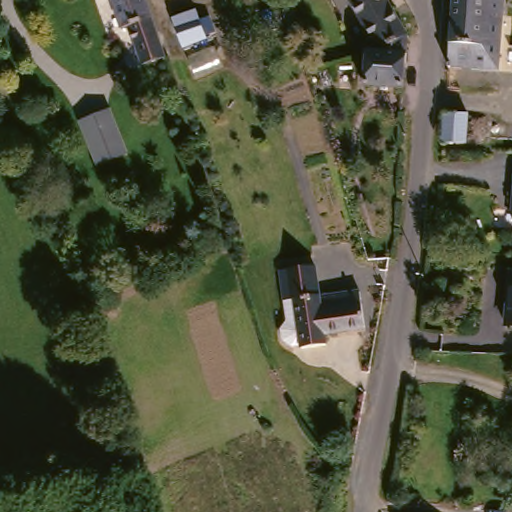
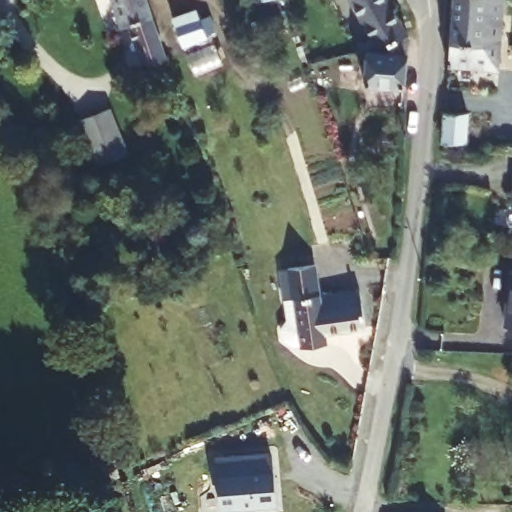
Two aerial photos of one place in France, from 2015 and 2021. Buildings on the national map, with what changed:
unchanged [(152,67),(149,61),(136,27),(126,30),(114,0),(149,0),(167,49),(171,60),(152,67)]
unchanged [(400,36),(370,40),(350,0),(384,0),(400,31),(400,36)]
unchanged [(450,62),(459,0),(508,0),(500,69),(450,62)]
unchanged [(221,60),(190,69),(172,18),(198,9),(221,60)]
unchanged [(400,36),(396,78),(356,74),(358,42),(370,40),(400,36)]
unchanged [(110,108),(128,153),(95,168),(76,123),(110,108)]
unchanged [(472,114),(467,146),(445,143),(450,112),(472,114)]
unchanged [(510,228),(512,196),(512,228),(510,228)]
unchanged [(330,326),(333,347),(306,352),(296,297),(282,299),(280,276),(294,273),(318,268),(322,292),(362,285),(369,321),(330,326)]
new [(278,507),(219,512),(215,457),(272,452),(278,507)]
unchanged [(121,474),(97,481),(93,462),(117,456),(121,474)]

